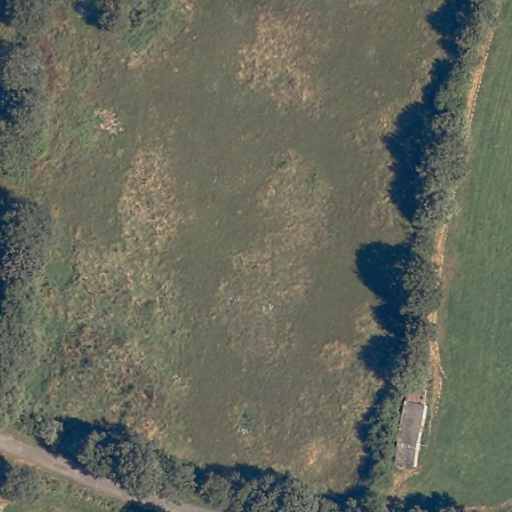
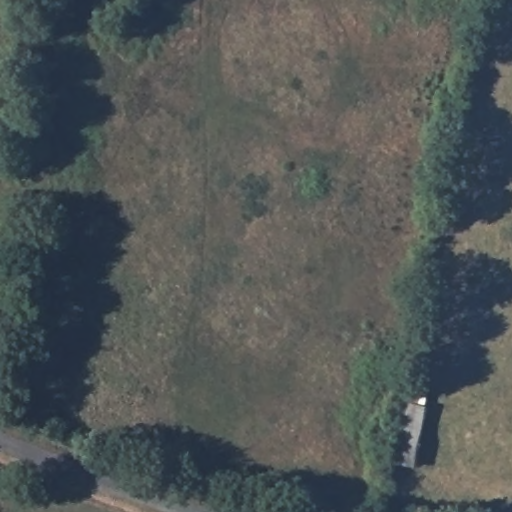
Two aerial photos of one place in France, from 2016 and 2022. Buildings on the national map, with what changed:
unchanged [(429,407),(417,470),(389,465),(400,401),(429,407)]

